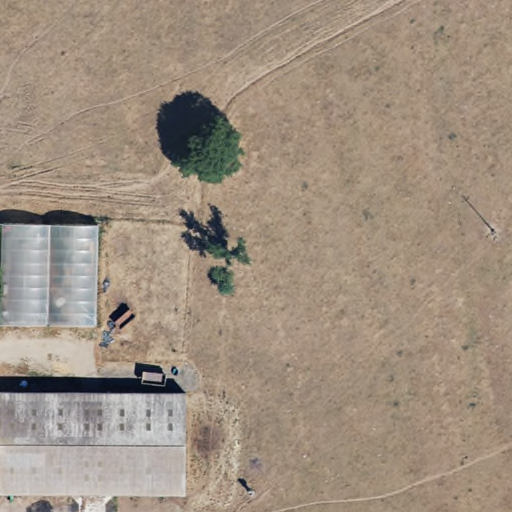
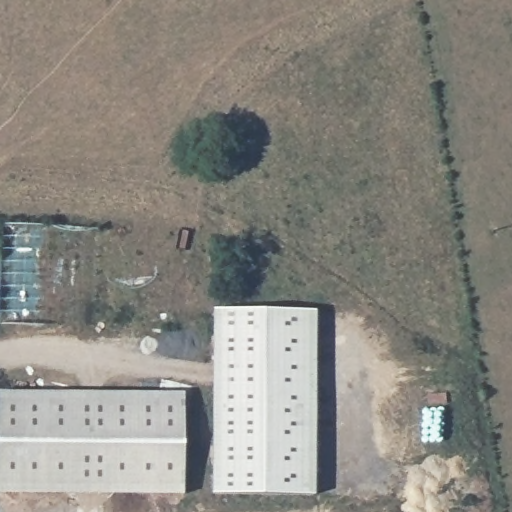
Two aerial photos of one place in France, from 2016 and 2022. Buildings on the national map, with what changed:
unchanged [(100,223),(98,327),(1,325),(3,222),(100,223)]
new [(216,309),(316,311),(315,496),(215,494),(216,309)]
unchanged [(185,497),(0,496),(0,392),(185,394),(185,497)]

